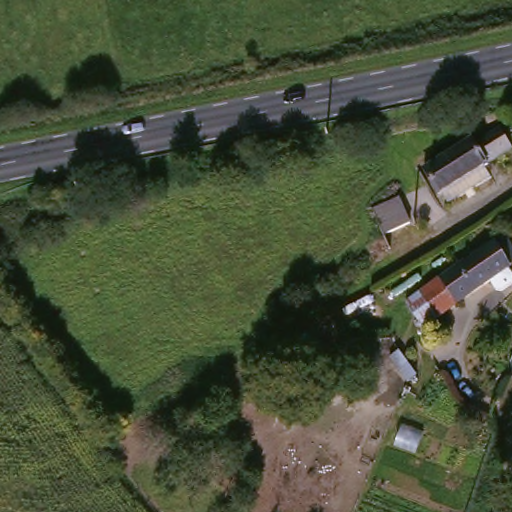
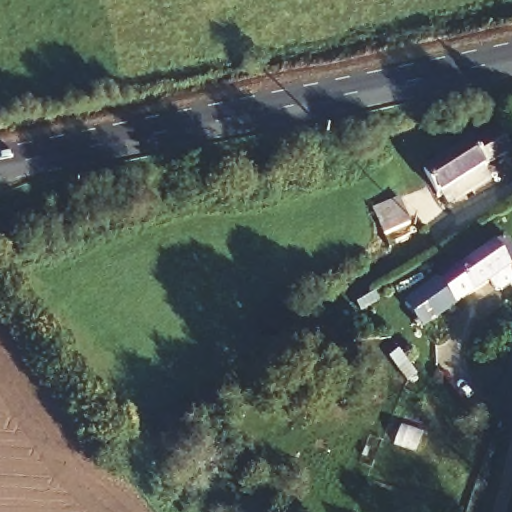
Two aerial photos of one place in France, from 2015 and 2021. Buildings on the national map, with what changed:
unchanged [(469,137),(475,145),(500,129),(512,149),(512,152),(437,201),(418,172),(469,137)]
unchanged [(392,199),(411,235),(390,246),(372,209),(392,199)]
unchanged [(421,327),(400,297),(495,237),(511,260),(421,327)]

